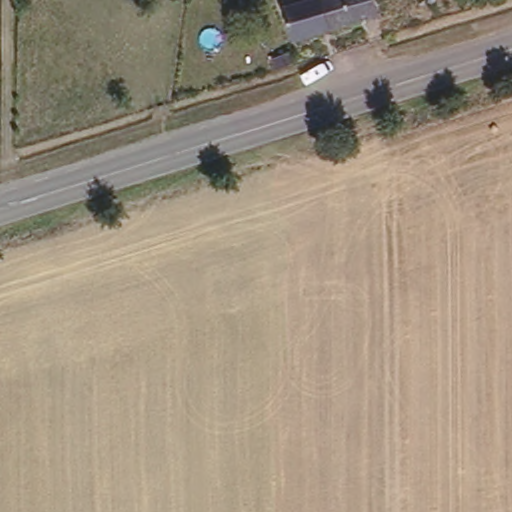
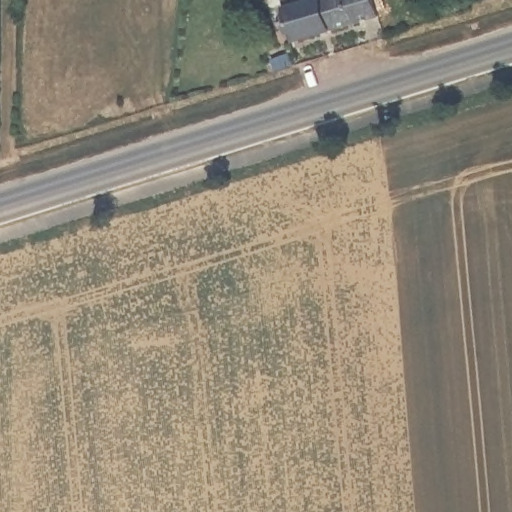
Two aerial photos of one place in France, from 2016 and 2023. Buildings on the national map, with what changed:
unchanged [(295,41),(284,0),(374,0),(379,19),(295,41)]

